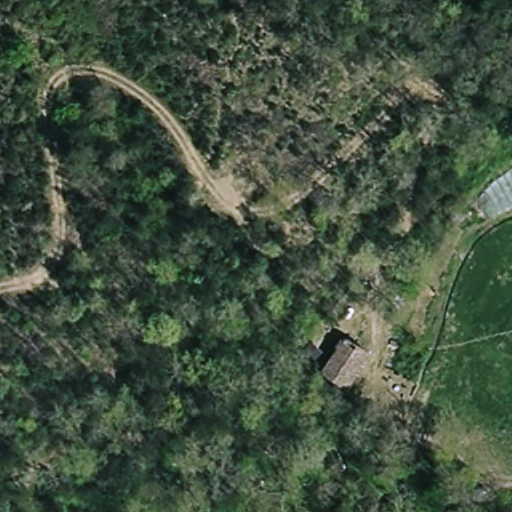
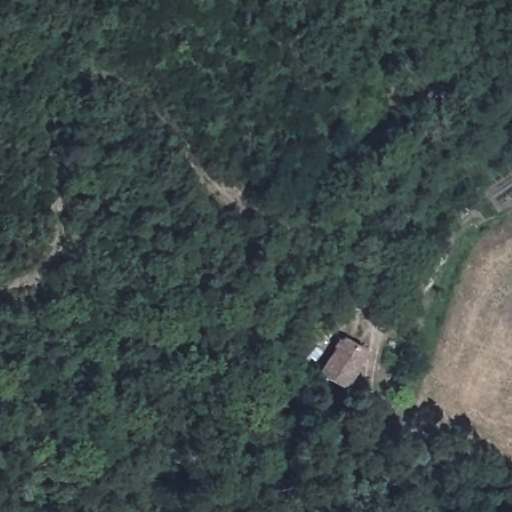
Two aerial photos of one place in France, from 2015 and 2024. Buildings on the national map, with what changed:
unchanged [(346,390),(325,376),(348,342),(368,357),(346,390)]

